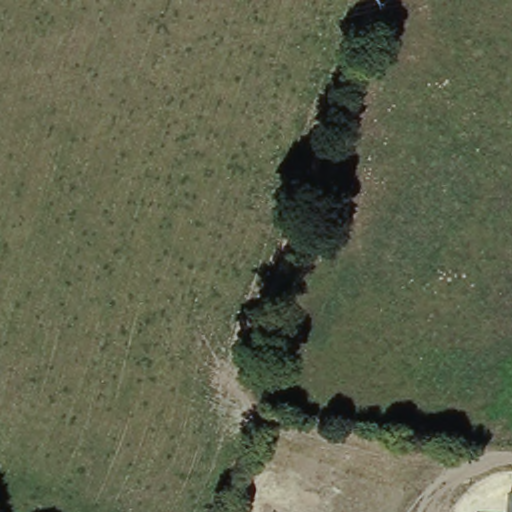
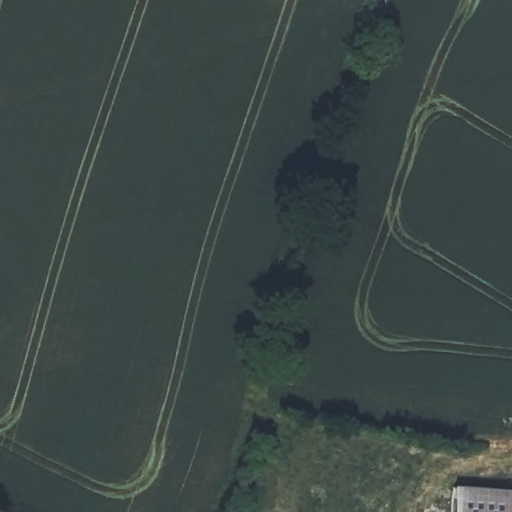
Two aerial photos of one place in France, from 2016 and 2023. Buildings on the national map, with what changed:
new [(512,490),(512,512),(451,512),(453,486),(512,490)]
demolished [(512,494),(512,512),(508,512),(510,493),(512,494)]

